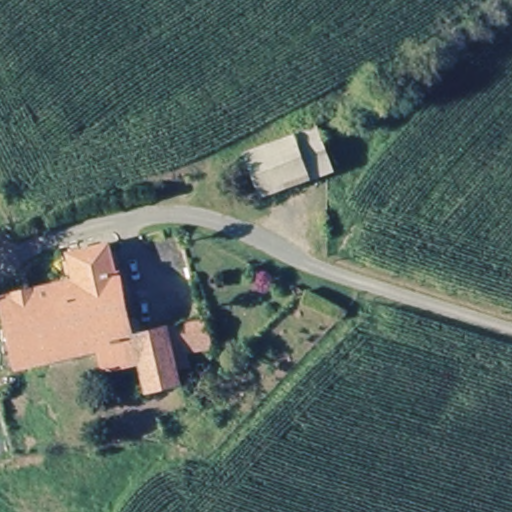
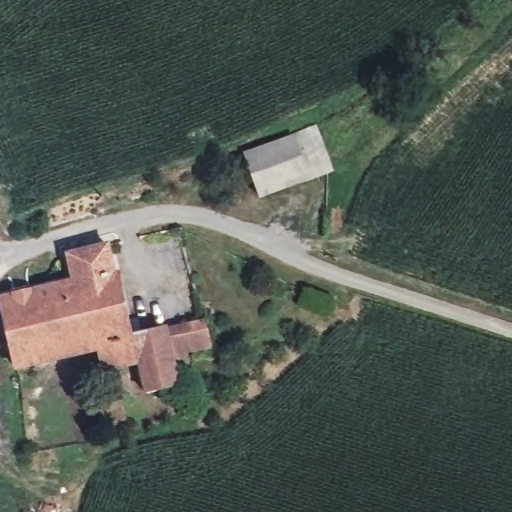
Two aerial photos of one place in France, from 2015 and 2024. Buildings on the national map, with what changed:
unchanged [(252,149),(299,133),(313,174),(266,190),(252,149)]
unchanged [(96,350),(9,368),(0,320),(0,295),(74,280),(70,254),(111,245),(134,341),(206,326),(212,352),(185,361),(187,373),(174,375),(177,393),(141,400),(136,368),(101,375),(96,350)]

